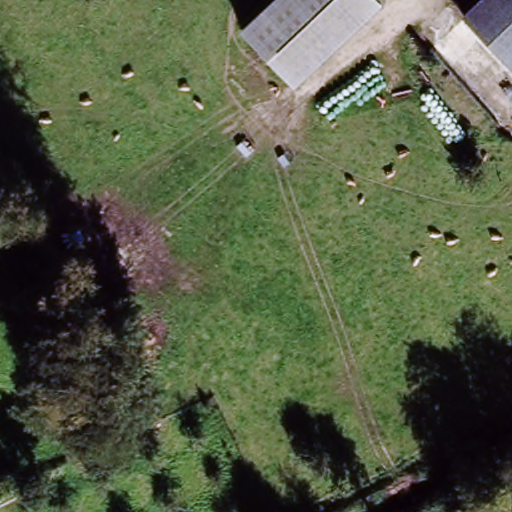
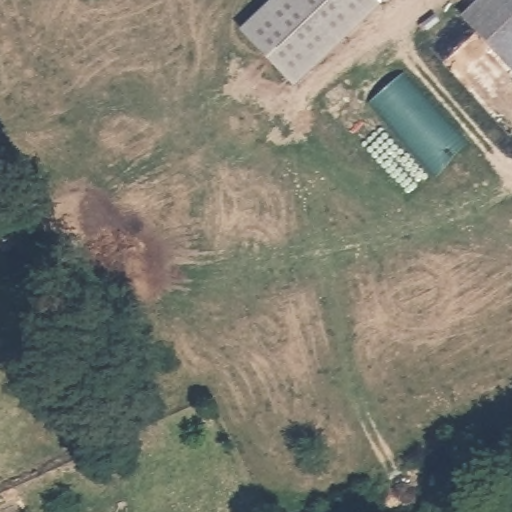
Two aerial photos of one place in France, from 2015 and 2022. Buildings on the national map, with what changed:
unchanged [(293,88),(240,31),(273,0),(387,0),(382,4),(293,88)]
unchanged [(460,16),(478,0),(512,0),(512,70),(460,16)]
new [(472,147),(440,178),(370,101),(402,72),(472,147)]

